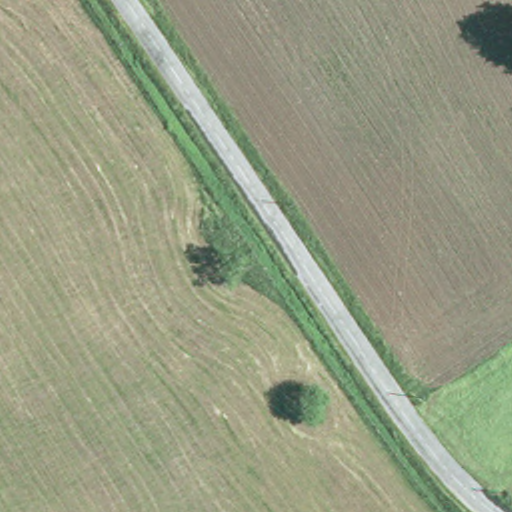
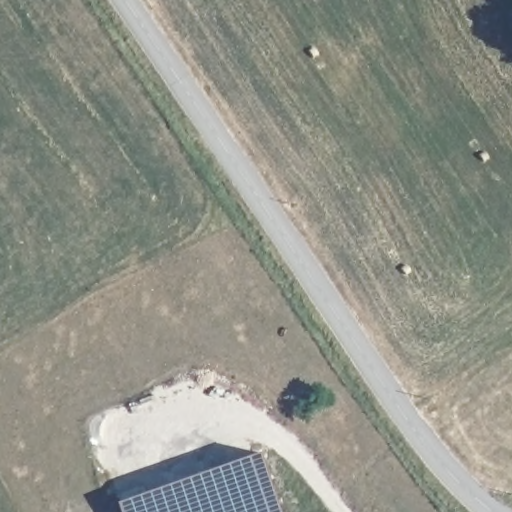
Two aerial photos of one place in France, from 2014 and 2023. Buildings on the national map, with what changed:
new [(260,451),(281,512),(122,512),(118,501),(260,451)]

